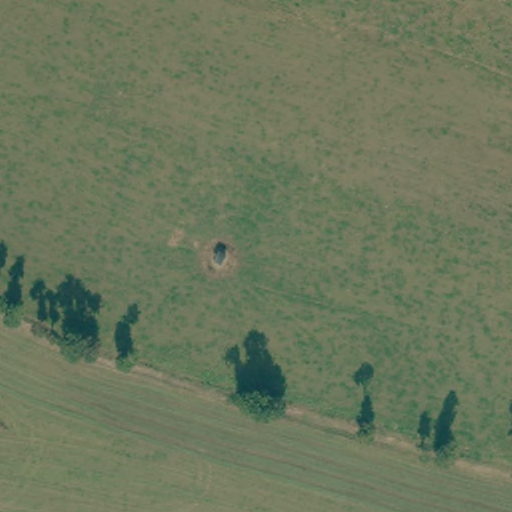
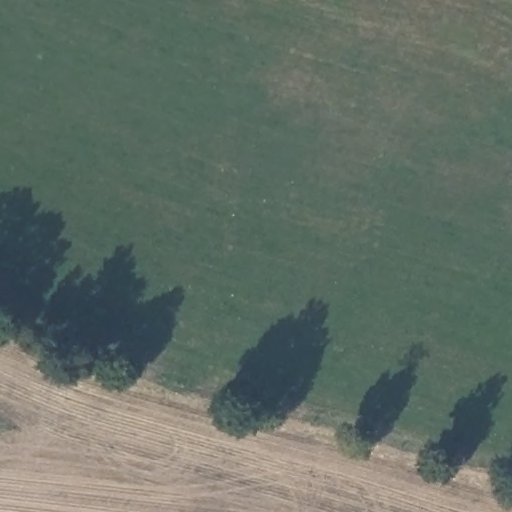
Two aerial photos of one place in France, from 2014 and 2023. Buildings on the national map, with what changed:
[]

